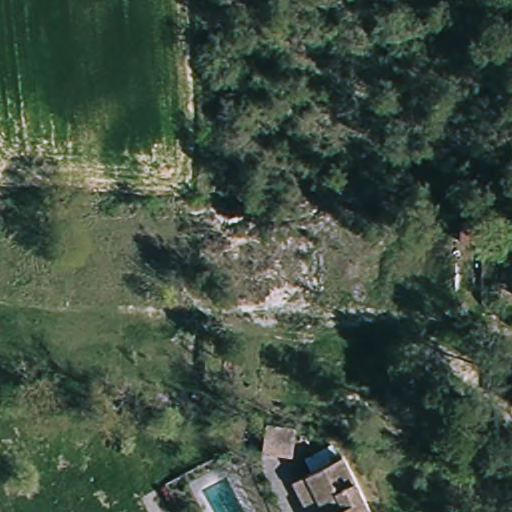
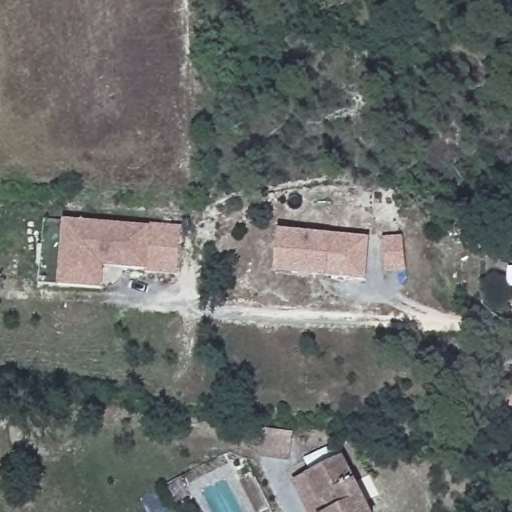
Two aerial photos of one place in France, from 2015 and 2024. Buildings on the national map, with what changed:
demolished [(482,218),(480,240),(453,238),(455,217),(482,218)]
new [(60,287),(64,219),(150,225),(150,223),(181,224),(177,275),(147,271),(105,268),(103,289),(60,287)]
new [(280,229),(370,238),(366,279),(293,272),(276,270),(278,244),(280,229)]
new [(404,235),(406,268),(386,270),(384,237),(404,235)]
unchanged [(512,400),(512,410),(509,408),(512,400)]
unchanged [(323,502),(310,477),(347,458),(375,512),(337,512),(330,499),(323,502)]

